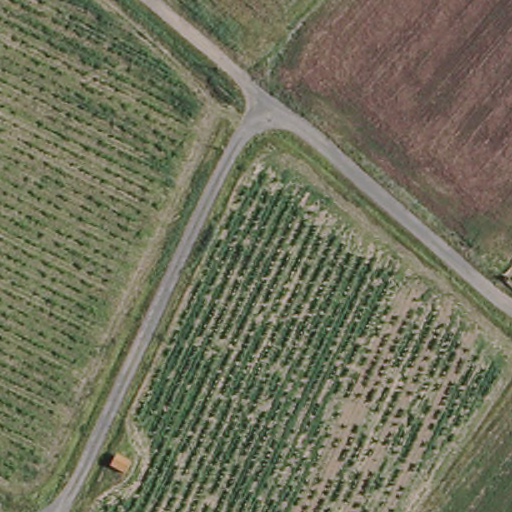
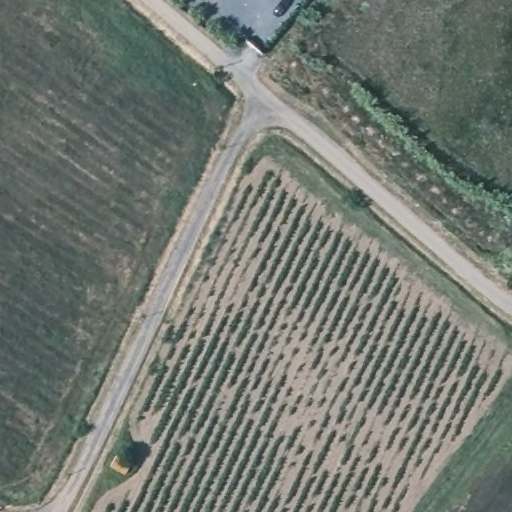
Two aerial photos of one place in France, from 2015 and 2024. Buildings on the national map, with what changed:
unchanged [(122,468),(115,464),(120,453),(127,457),(122,468)]

